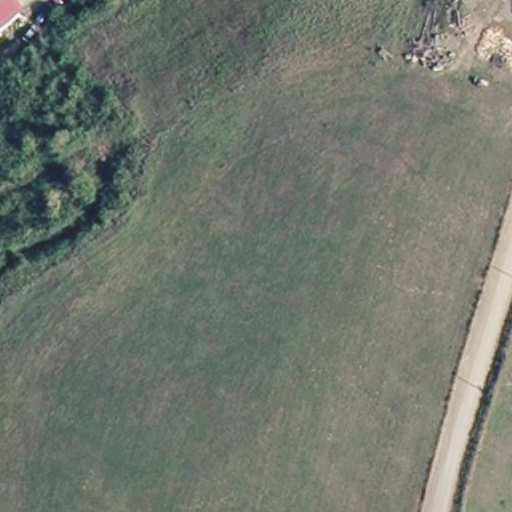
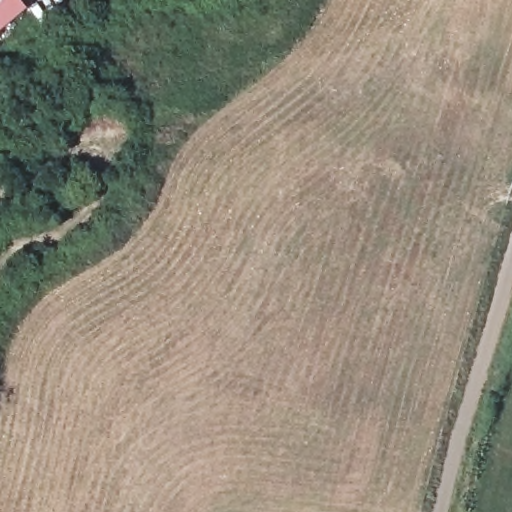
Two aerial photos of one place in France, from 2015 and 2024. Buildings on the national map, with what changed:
unchanged [(0,29),(0,0),(18,0),(24,8),(0,29)]

